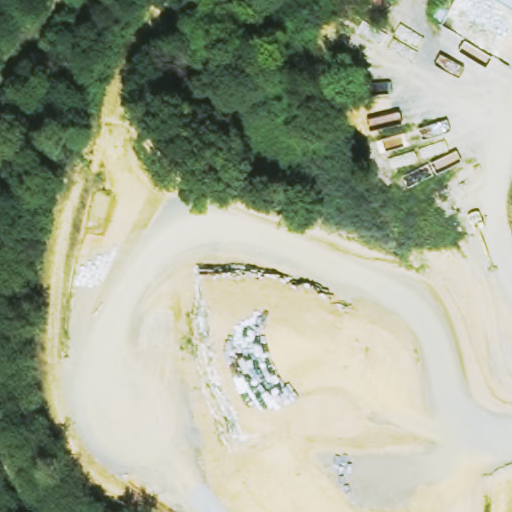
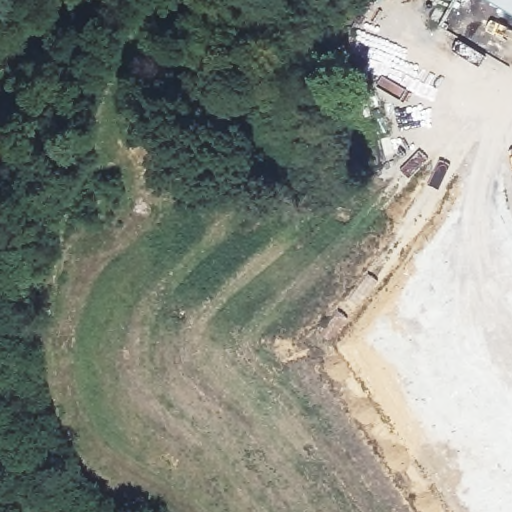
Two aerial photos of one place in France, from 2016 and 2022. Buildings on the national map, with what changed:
unchanged [(500,0),(512,0),(512,7),(500,0)]

